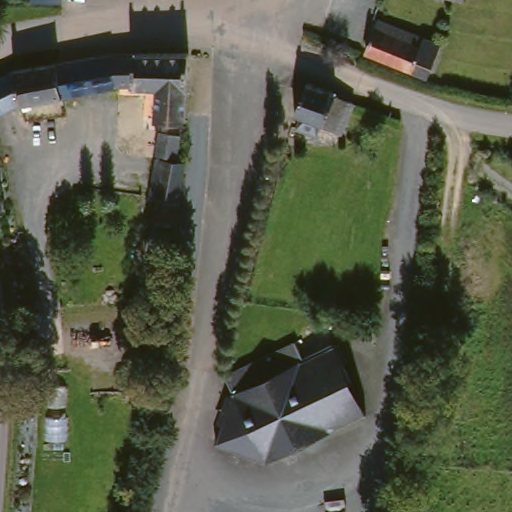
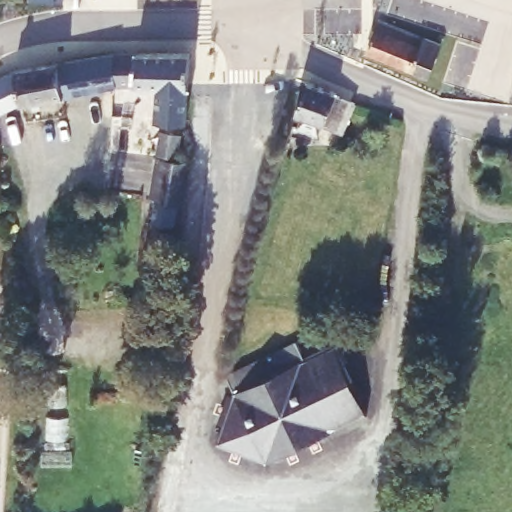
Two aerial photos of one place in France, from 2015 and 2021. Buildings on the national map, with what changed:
unchanged [(64,11),(31,11),(32,0),(65,0),(64,11)]
unchanged [(426,81),(368,58),(368,56),(371,44),(381,26),(438,48),(426,81)]
unchanged [(180,120),(151,119),(153,88),(110,90),(108,57),(185,55),(180,120)]
unchanged [(110,90),(58,98),(54,65),(108,57),(110,90)]
unchanged [(58,98),(12,105),(10,71),(54,65),(58,98)]
unchanged [(0,112),(0,76),(10,71),(12,105),(0,112)]
unchanged [(295,129),(298,123),(301,114),(295,113),(298,105),(305,83),(336,95),(334,99),(355,107),(349,124),(346,132),(334,129),(334,128),(329,125),(324,126),(320,138),(295,129)]
unchanged [(268,469),(212,448),(231,399),(223,379),(289,345),(298,364),(331,347),(366,419),(268,469)]

